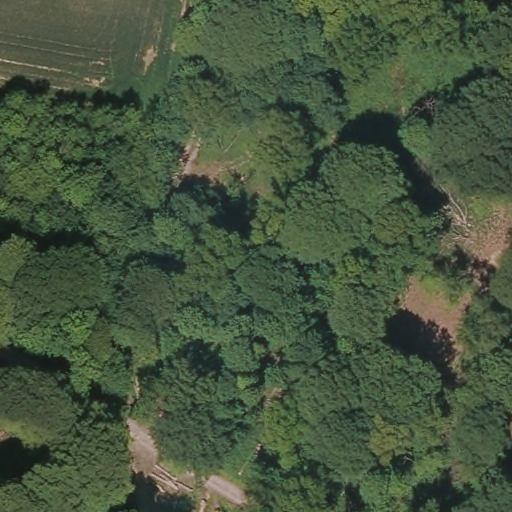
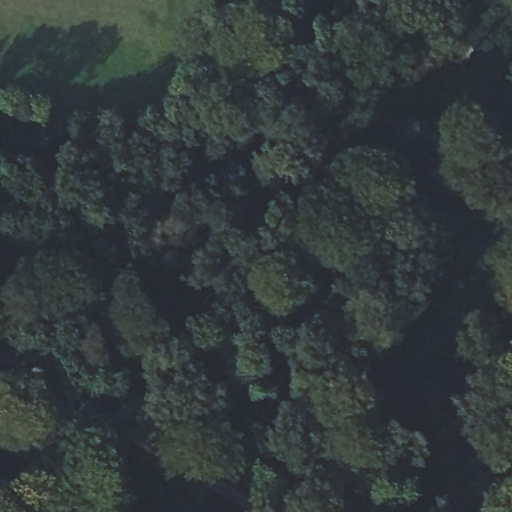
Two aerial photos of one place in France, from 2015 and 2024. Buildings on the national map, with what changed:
[]

